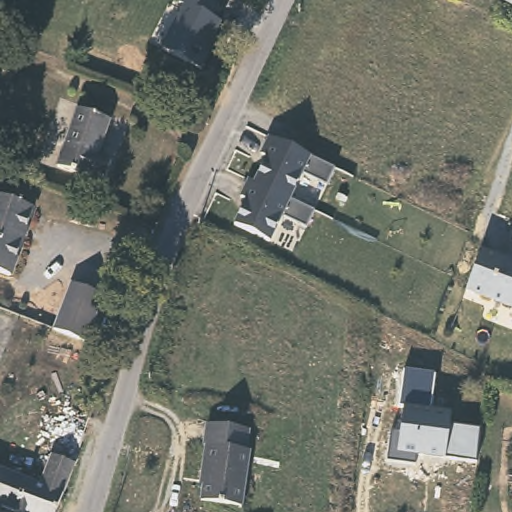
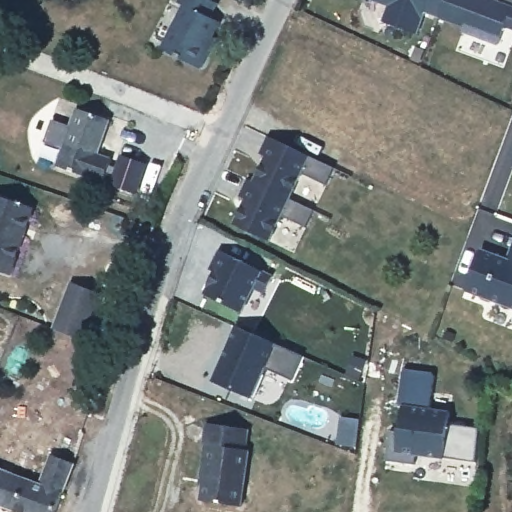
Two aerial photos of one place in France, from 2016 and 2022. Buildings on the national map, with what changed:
unchanged [(210,15),(220,20),(200,66),(164,51),(185,1),(181,0),(216,0),(217,1),(210,15)]
new [(500,0),(507,3),(508,0),(512,0),(512,29),(505,28),(500,46),(490,43),(485,56),(467,51),(472,36),(463,33),(465,26),(427,13),(420,34),(384,21),(390,5),(374,0),(500,0)]
demolished [(507,3),(508,0),(512,0),(512,5),(507,3)]
unchanged [(109,114),(97,152),(111,157),(104,178),(60,164),(80,104),(109,114)]
unchanged [(268,153),(262,150),(271,133),(312,153),(336,164),(328,182),(303,170),(291,195),(256,179),(268,153)]
unchanged [(291,195),(311,205),(316,208),(307,224),(283,213),(271,238),(236,221),(248,196),(242,193),(250,176),(256,179),(291,195)]
unchanged [(14,274),(0,270),(0,195),(36,208),(14,274)]
new [(214,271),(211,269),(220,250),(263,271),(264,269),(275,274),(265,293),(255,289),(244,312),(205,294),(214,271)]
unchanged [(480,254),(508,263),(510,259),(512,252),(512,307),(467,291),(480,254)]
unchanged [(81,349),(57,339),(48,335),(66,289),(75,292),(98,302),(81,349)]
new [(239,326),(279,344),(305,356),(294,379),(266,367),(253,398),(215,381),(239,326)]
unchanged [(453,426),(478,429),(475,462),(416,454),(414,464),(388,459),(391,432),(401,432),(405,407),(398,404),(403,370),(434,374),(428,409),(451,413),(453,426)]
unchanged [(205,442),(203,441),(206,421),(248,428),(245,448),(249,449),(241,507),(201,500),(206,471),(201,471),(205,442)]
unchanged [(50,456),(72,463),(55,512),(21,512),(0,505),(0,467),(41,482),(50,456)]

